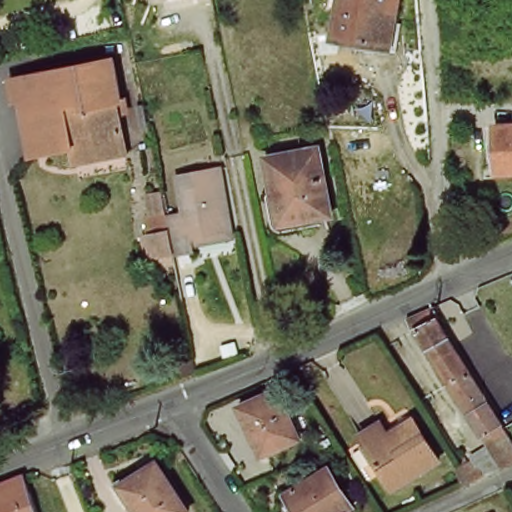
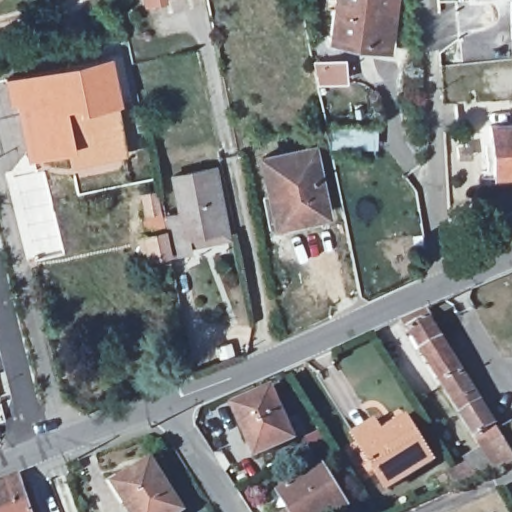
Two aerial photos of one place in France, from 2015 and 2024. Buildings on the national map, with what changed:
unchanged [(336,0),(395,0),(388,48),(330,39),(336,0)]
new [(494,0),(512,0),(512,5),(494,6),(494,0)]
unchanged [(70,149),(45,154),(29,156),(26,137),(21,112),(19,102),(15,78),(109,61),(117,105),(113,106),(114,112),(122,154),(94,160),(72,164),(70,149)]
unchanged [(492,146),(482,147),(480,128),(491,127),(512,126),(512,173),(494,175),(492,146)]
new [(380,131),(380,152),(336,151),(332,130),(380,131)]
unchanged [(327,215),(301,221),(300,219),(277,224),(272,198),(270,199),(262,160),(313,149),(327,215)]
new [(45,170),(64,255),(26,262),(5,174),(45,170)]
unchanged [(192,246),(193,251),(180,254),(174,217),(186,215),(179,177),(220,170),(232,231),(233,238),(192,246)]
unchanged [(176,263),(157,267),(151,236),(153,236),(149,221),(167,217),(176,263)]
unchanged [(445,385),(412,332),(408,334),(402,321),(428,308),(435,321),(433,322),(465,373),(445,385)]
unchanged [(193,372),(180,378),(175,366),(190,360),(193,372)]
unchanged [(460,467),(469,462),(467,458),(484,448),(445,385),(465,373),(497,426),(512,450),(512,464),(490,474),(470,483),(460,488),(452,471),(460,467)]
unchanged [(295,441),(257,457),(235,407),(273,390),(295,441)]
unchanged [(355,437),(377,425),(384,437),(409,421),(434,462),(389,490),(355,437)]
unchanged [(158,471),(184,512),(132,512),(128,506),(117,487),(122,485),(143,471),(153,464),(158,471)]
unchanged [(279,509),(281,507),(291,501),(288,496),(309,482),(307,480),(324,468),(326,472),(330,470),(354,508),(348,512),(278,512),(278,511),(279,509)]
unchanged [(34,512),(0,512),(0,483),(22,475),(34,512)]

